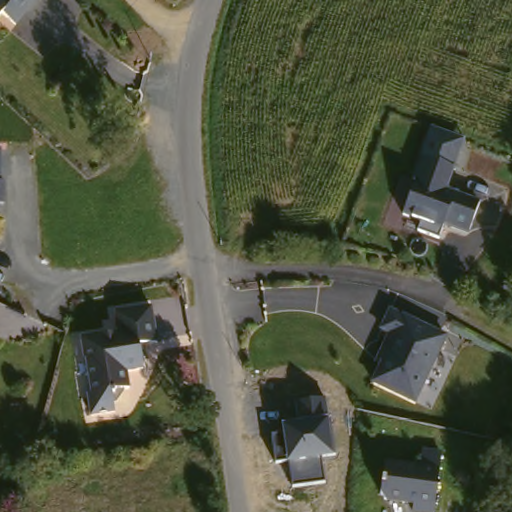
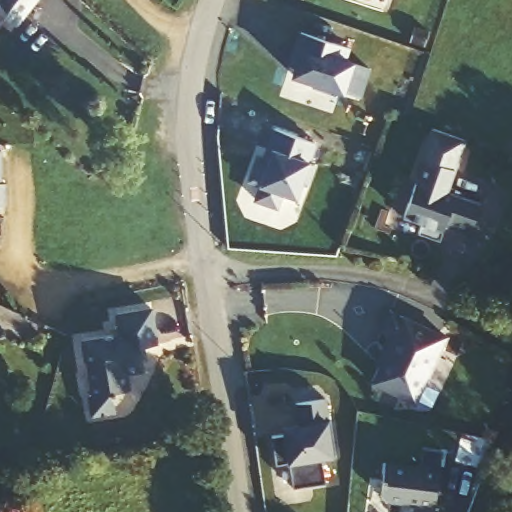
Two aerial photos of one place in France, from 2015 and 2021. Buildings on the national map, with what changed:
unchanged [(19,22),(5,10),(0,15),(0,0),(37,0),(19,22)]
unchanged [(2,18),(0,20),(0,16),(2,18)]
new [(347,91),(345,94),(289,75),(298,50),(292,47),(298,30),(350,47),(344,58),(356,63),(371,69),(361,97),(347,91)]
new [(259,185),(247,180),(256,155),(266,159),(271,147),(266,146),(272,129),(314,143),(308,160),(294,200),(280,194),(276,209),(253,199),(259,185)]
unchanged [(0,172),(0,150),(1,150),(0,172)]
unchanged [(425,155),(461,166),(455,189),(490,199),(477,235),(406,210),(425,155)]
unchanged [(6,184),(7,207),(0,207),(0,183),(6,184)]
unchanged [(155,303),(162,339),(145,342),(149,365),(132,369),(136,386),(122,388),(119,393),(122,408),(99,413),(95,392),(99,391),(92,358),(90,358),(86,338),(124,330),(120,310),(155,303)]
unchanged [(397,309),(456,335),(424,403),(370,377),(397,309)]
unchanged [(292,489),(289,463),(277,465),(273,438),(283,435),(282,425),(292,423),(289,404),(326,399),(329,419),(335,456),(322,457),(325,483),(292,489)]
unchanged [(425,468),(428,449),(449,451),(441,511),(383,501),(388,465),(425,468)]

